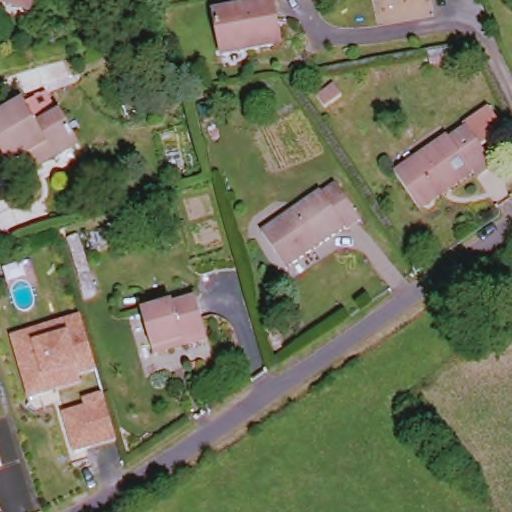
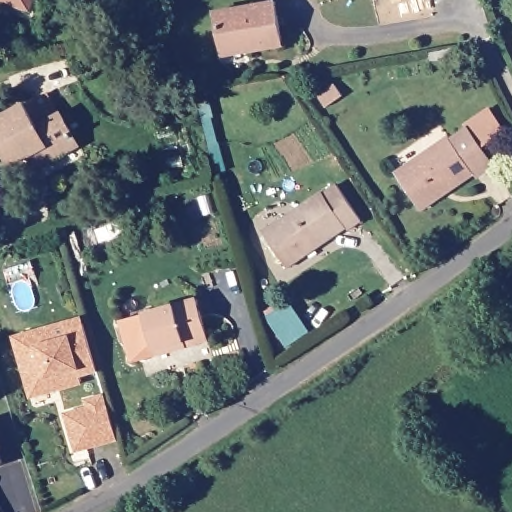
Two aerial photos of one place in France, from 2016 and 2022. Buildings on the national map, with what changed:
unchanged [(15,5),(0,0),(17,0),(15,5)]
unchanged [(212,44),(208,9),(265,0),(274,44),(241,49),(212,55),(212,44)]
unchanged [(348,84),(355,95),(338,106),(331,95),(348,84)]
unchanged [(26,156),(5,160),(2,146),(0,146),(0,116),(43,106),(50,128),(70,125),(77,160),(50,166),(30,171),(26,156)]
unchanged [(392,170),(445,134),(450,140),(465,129),(462,124),(487,107),(502,130),(477,146),(487,164),(472,174),(469,170),(415,205),(392,170)]
unchanged [(257,227),(310,192),(312,197),(328,186),(352,221),(337,232),(333,228),(280,263),(257,227)]
unchanged [(167,348),(151,352),(140,313),(193,297),(202,333),(180,339),(182,345),(167,348)]
unchanged [(97,372),(82,377),(83,386),(31,402),(14,336),(84,315),(97,372)]
unchanged [(120,443),(77,455),(65,411),(87,403),(86,398),(105,392),(120,443)]

